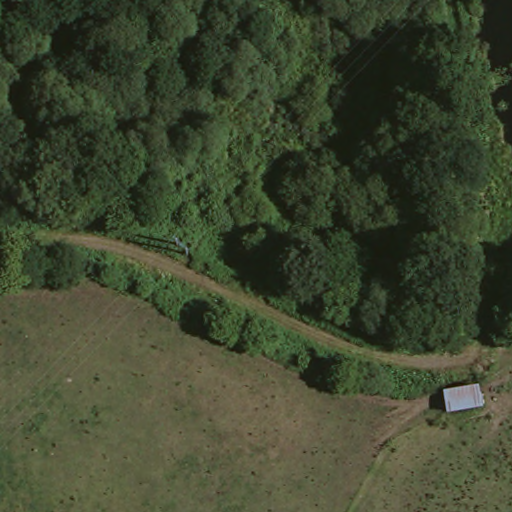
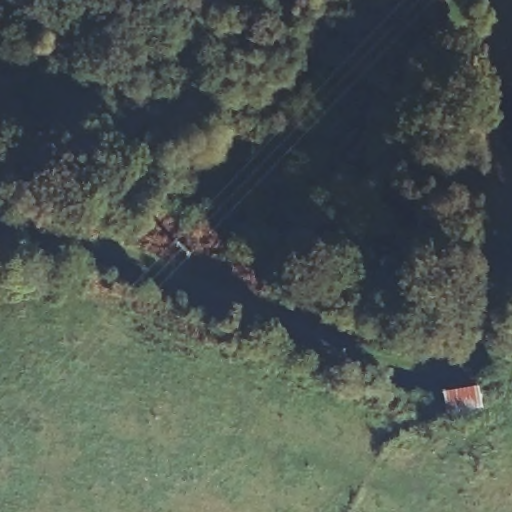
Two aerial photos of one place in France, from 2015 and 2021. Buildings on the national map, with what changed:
unchanged [(478,412),(443,418),(438,396),(471,387),(478,412)]

